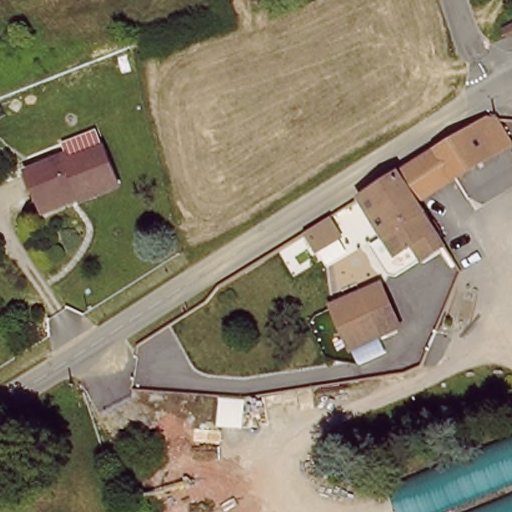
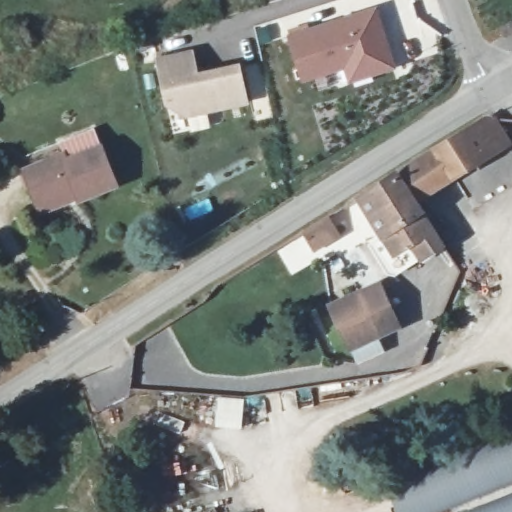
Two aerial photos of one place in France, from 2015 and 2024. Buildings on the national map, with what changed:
new [(376,6),(394,70),(347,84),(343,69),(301,82),(285,36),(376,6)]
new [(188,53),(193,76),(235,66),(243,103),(181,116),(164,105),(154,61),(188,53)]
unchanged [(483,122),(502,154),(435,192),(420,202),(410,187),(399,171),(483,122)]
unchanged [(41,205),(27,166),(68,150),(71,156),(104,144),(121,184),(82,197),(44,212),(41,205)]
unchanged [(410,187),(420,202),(436,231),(395,254),(357,199),(399,171),(410,187)]
unchanged [(335,226),(315,240),(310,234),(290,244),(287,240),(328,212),(335,226)]
unchanged [(399,259),(413,283),(399,289),(388,263),(399,259)]
unchanged [(351,359),(329,308),(379,285),(405,326),(351,359)]
unchanged [(396,512),(388,494),(512,437),(512,486),(454,512),(396,512)]
unchanged [(489,512),(512,502),(512,512),(489,512)]

